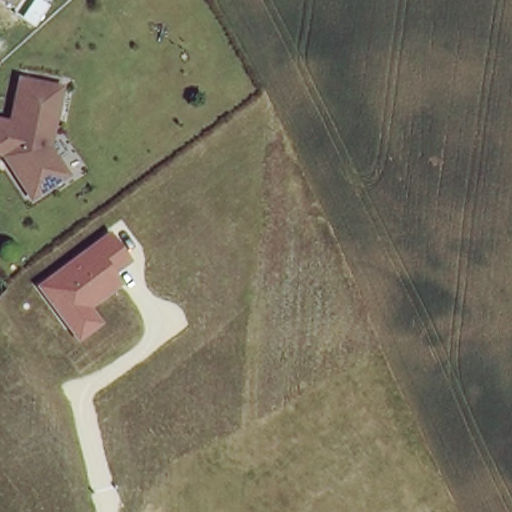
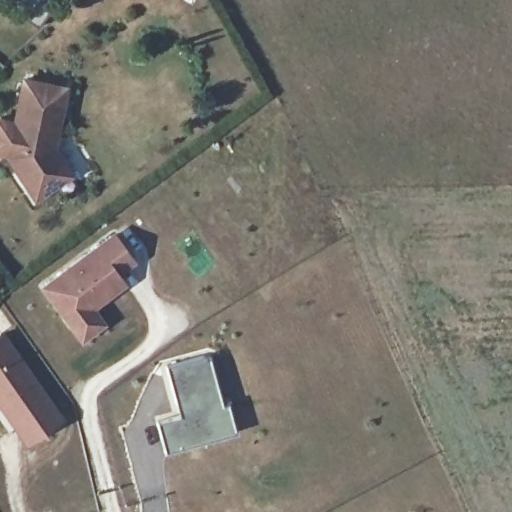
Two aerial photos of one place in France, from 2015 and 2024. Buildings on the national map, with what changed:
unchanged [(56,182),(34,196),(18,171),(6,152),(0,151),(0,118),(15,121),(25,78),(67,87),(52,146),(61,160),(70,173),(56,182)]
unchanged [(80,342),(40,286),(113,231),(134,261),(118,273),(125,284),(92,307),(104,323),(80,342)]
new [(2,329),(62,418),(25,445),(0,409),(0,331),(2,329)]
new [(165,449),(157,421),(180,415),(167,366),(206,354),(220,404),(227,402),(234,430),(165,449)]

